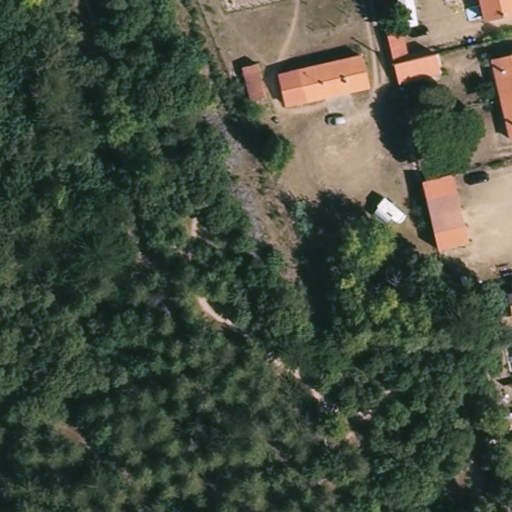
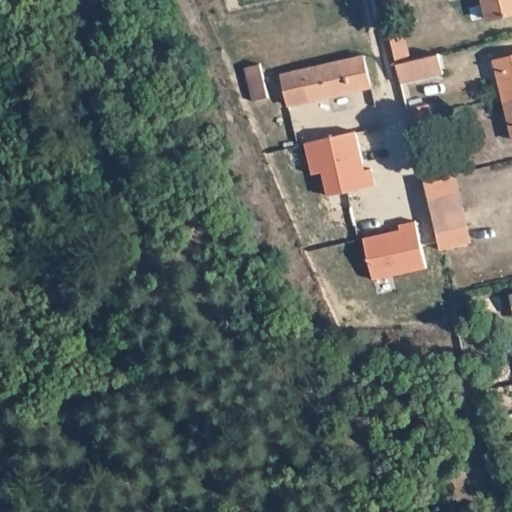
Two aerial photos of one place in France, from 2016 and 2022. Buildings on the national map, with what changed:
unchanged [(493,25),(487,0),(512,0),(512,19),(493,25)]
unchanged [(447,77),(405,87),(400,69),(394,40),(407,38),(413,66),(443,59),(447,77)]
unchanged [(362,56),(369,86),(289,105),(281,75),(362,56)]
unchanged [(512,62),(512,117),(499,65),(512,62)]
unchanged [(259,65),(267,97),(252,100),(244,67),(259,65)]
unchanged [(434,110),(436,122),(414,127),(411,115),(434,110)]
new [(303,143),(355,130),(364,170),(371,168),(375,185),(326,195),(320,173),(310,174),(303,143)]
unchanged [(458,179),(474,249),(444,255),(428,186),(458,179)]
new [(371,278),(362,237),(399,229),(398,225),(415,220),(425,267),(371,278)]
unchanged [(510,300),(512,300),(512,311),(510,300)]

